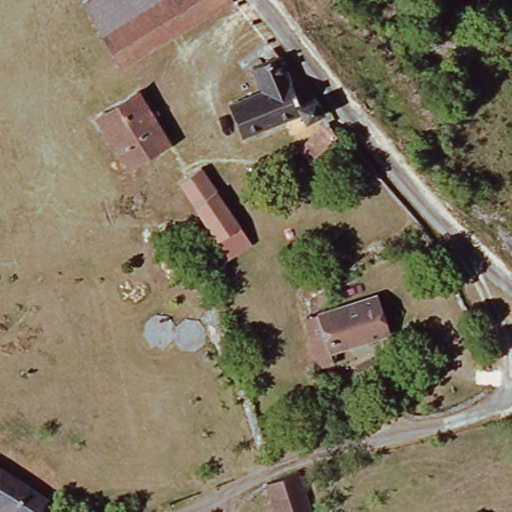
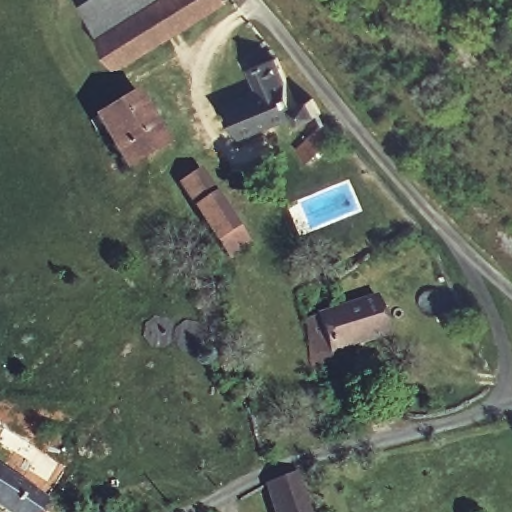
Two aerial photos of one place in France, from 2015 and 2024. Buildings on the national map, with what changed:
unchanged [(231,0),(119,65),(83,4),(90,0),(231,0)]
unchanged [(250,66),(278,55),(296,101),(314,95),(322,112),(299,122),(298,117),(239,140),(227,102),(258,89),(250,66)]
unchanged [(94,116),(134,91),(165,142),(125,167),(94,116)]
unchanged [(308,164),(296,152),(317,125),(327,120),(335,133),(308,164)]
unchanged [(248,245),(223,260),(192,208),(182,213),(174,211),(171,208),(170,202),(175,196),(183,192),(181,186),(204,170),(248,245)]
unchanged [(378,299),(388,334),(321,355),(324,369),(312,372),(301,320),(378,299)]
unchanged [(46,512),(14,512),(0,503),(0,460),(59,494),(46,512)]
unchanged [(272,512),(264,485),(298,472),(311,512),(272,512)]

